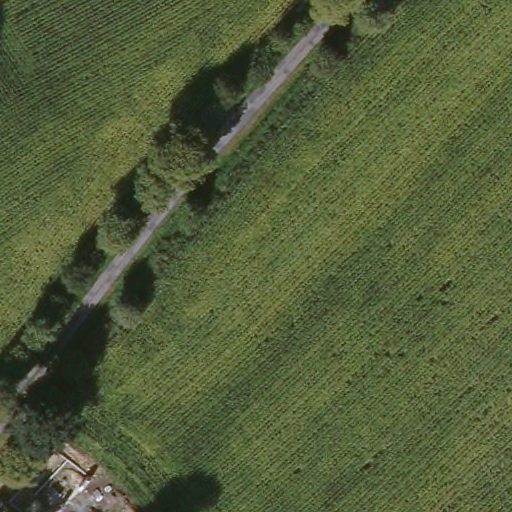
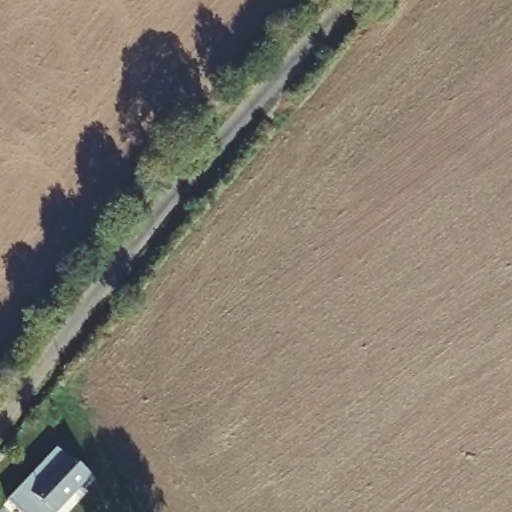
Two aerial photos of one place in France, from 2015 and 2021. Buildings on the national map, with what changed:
new [(89,476),(56,512),(20,512),(9,501),(59,448),(89,476)]
demolished [(42,512),(28,501),(63,463),(87,482),(58,512),(42,512)]

